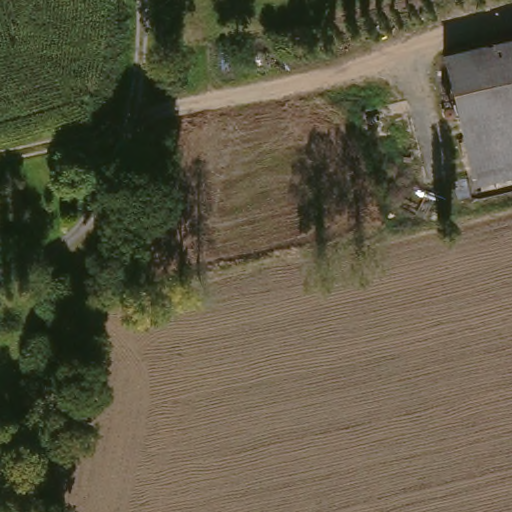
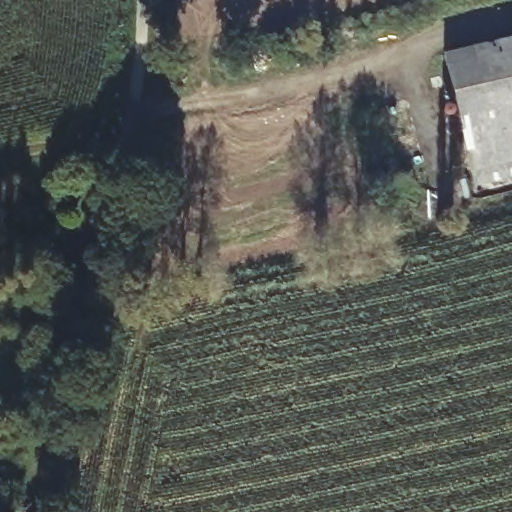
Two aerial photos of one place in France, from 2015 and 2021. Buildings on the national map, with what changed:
unchanged [(469,166),(448,54),(455,53),(512,43),(512,159),(479,164),(469,166)]

